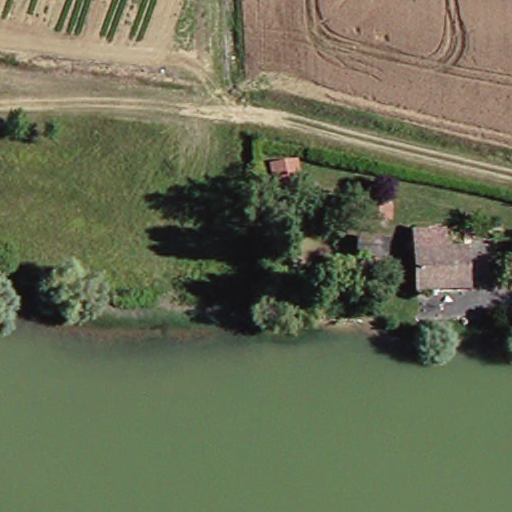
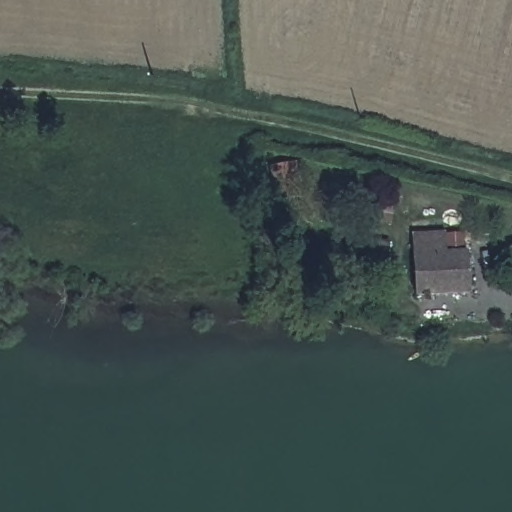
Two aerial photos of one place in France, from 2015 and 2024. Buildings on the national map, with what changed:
unchanged [(463,289),(410,290),(408,258),(407,237),(450,233),(452,255),(462,253),(463,289)]

